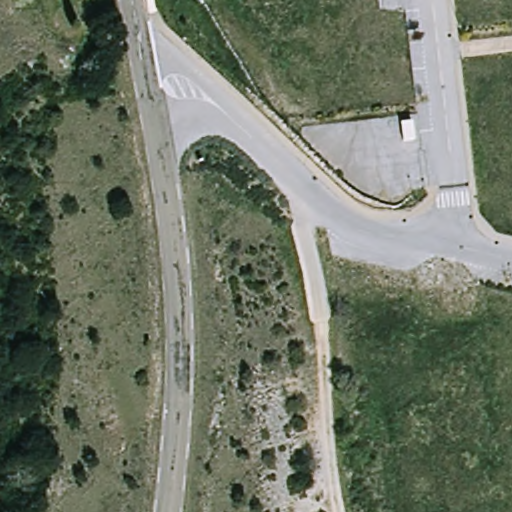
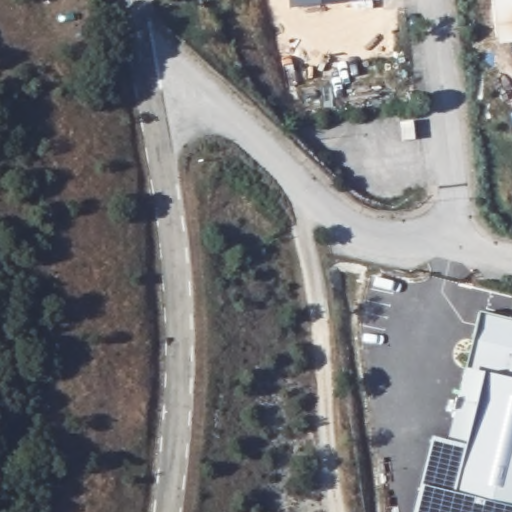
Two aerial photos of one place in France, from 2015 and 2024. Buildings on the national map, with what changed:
new [(290,8),(290,0),(357,0),(290,8)]
new [(492,0),(512,0),(512,44),(498,46),(492,0)]
new [(512,321),(512,512),(412,512),(431,437),(448,442),(480,314),(512,321)]

